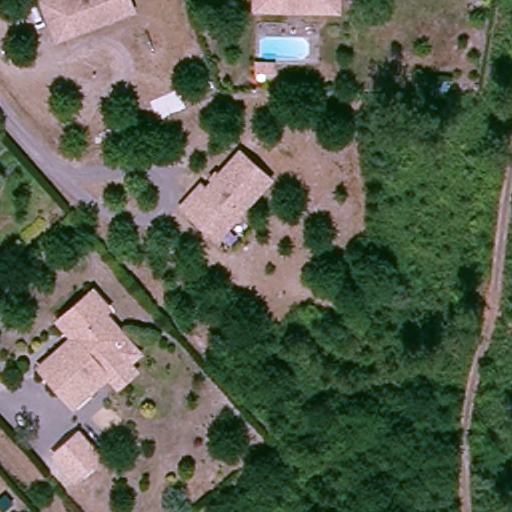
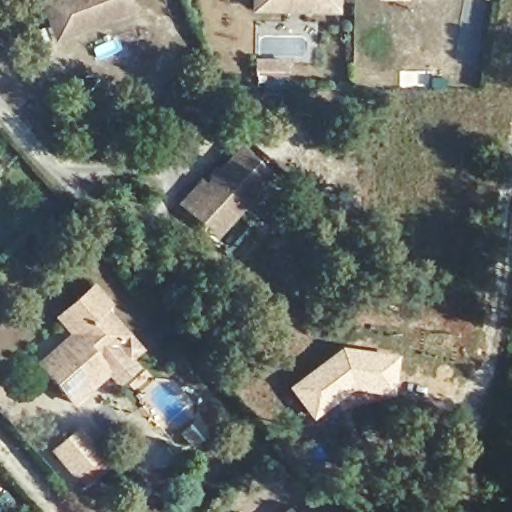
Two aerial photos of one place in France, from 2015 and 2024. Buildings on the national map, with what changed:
unchanged [(39,0),(124,0),(126,4),(66,26),(51,31),(44,15),(39,0)]
unchanged [(300,0),(300,2),(320,3),(320,0),(325,0),(325,9),(246,7),(246,0),(300,0)]
unchanged [(300,0),(320,0),(320,3),(300,2),(300,0)]
new [(169,88),(177,106),(150,118),(142,100),(169,88)]
unchanged [(200,221),(176,201),(195,180),(200,185),(235,145),(266,172),(224,221),(213,233),(200,221)]
unchanged [(27,362),(61,331),(45,314),(72,290),(79,284),(86,292),(95,302),(90,306),(107,324),(106,342),(87,358),(97,369),(68,395),(62,400),(27,362)]
unchanged [(127,346),(116,356),(125,365),(107,381),(97,369),(87,358),(106,342),(107,324),(127,346)]
new [(341,347),(398,355),(391,400),(356,395),(351,395),(313,423),(286,388),(341,347)]
new [(178,434),(197,417),(211,433),(192,450),(178,434)]
unchanged [(49,453),(71,433),(72,432),(94,456),(71,477),(70,478),(64,471),(48,454),(49,453)]
new [(288,507),(292,512),(282,512),(288,507)]
new [(238,510),(239,512),(235,512),(238,510)]

